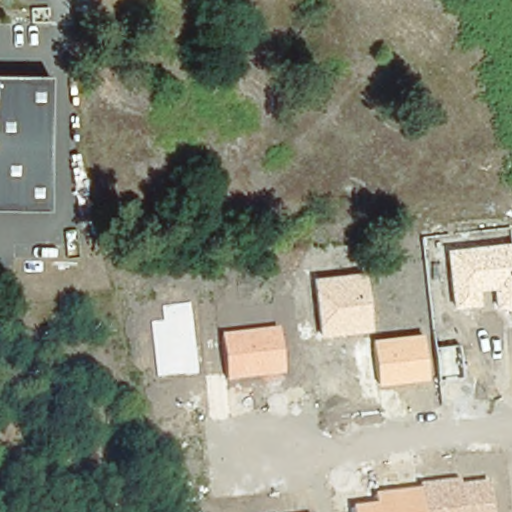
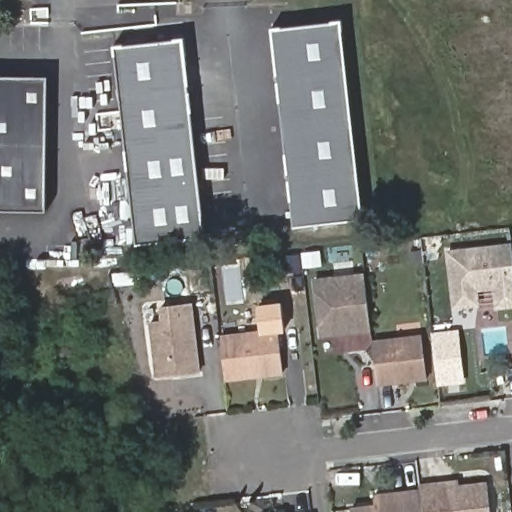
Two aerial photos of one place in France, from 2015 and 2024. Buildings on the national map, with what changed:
new [(271,28),(342,20),(364,218),(294,225),(271,28)]
new [(184,38),(205,236),(139,242),(115,45),(184,38)]
unchanged [(46,209),(0,209),(0,76),(49,75),(46,209)]
unchanged [(495,308),(493,288),(478,290),(480,305),(452,309),(446,249),(512,240),(512,307),(495,308)]
unchanged [(320,336),(312,278),(364,272),(370,331),(320,336)]
unchanged [(159,378),(152,323),(165,321),(163,305),(191,302),(200,373),(159,378)]
unchanged [(227,381),(221,335),(277,327),(282,373),(227,381)]
new [(457,329),(464,383),(437,385),(432,332),(457,329)]
unchanged [(378,386),(372,339),(422,333),(428,380),(378,386)]
unchanged [(420,487),(418,481),(459,477),(460,483),(487,480),(491,512),(423,512),(420,487)]
unchanged [(423,512),(352,512),(352,506),(375,503),(373,492),(420,487),(423,512)]

